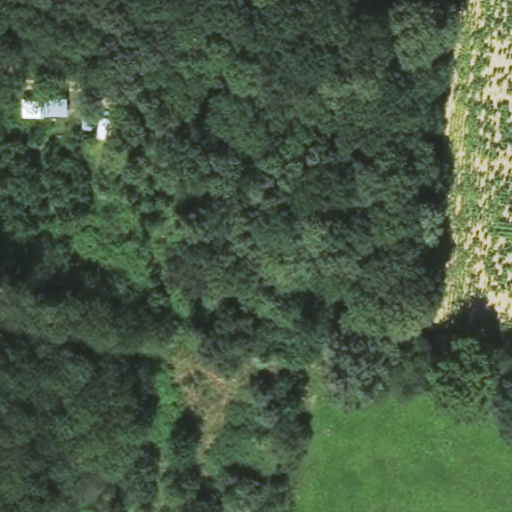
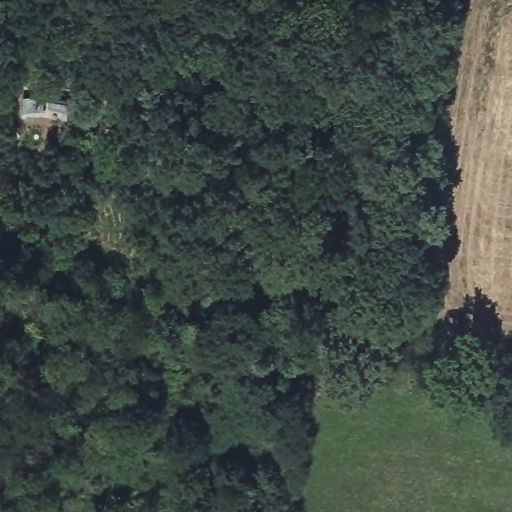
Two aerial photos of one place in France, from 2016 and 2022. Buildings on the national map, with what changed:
unchanged [(24,120),(21,97),(67,93),(70,114),(24,120)]

